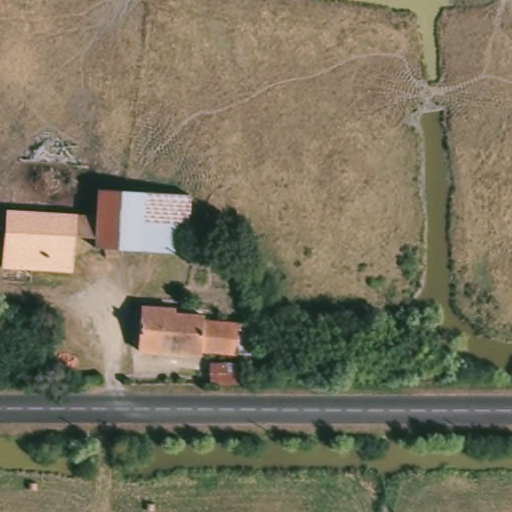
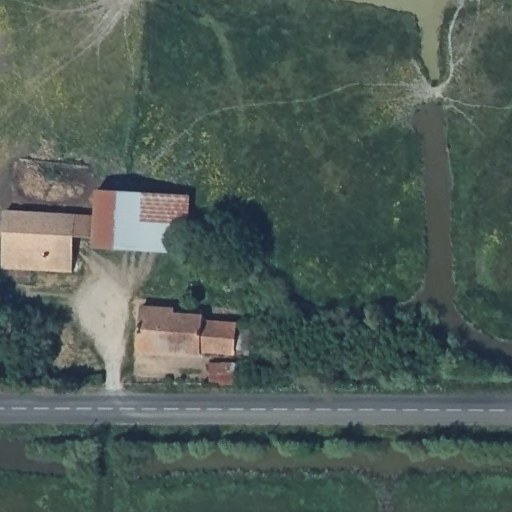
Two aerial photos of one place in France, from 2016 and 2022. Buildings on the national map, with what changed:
unchanged [(166,246),(99,249),(101,240),(81,241),(81,273),(14,273),(13,218),(103,217),(103,188),(164,187),(166,246)]
unchanged [(254,345),(209,346),(209,355),(146,352),(142,306),(174,303),(174,316),(208,314),(209,326),(253,321),(254,345)]
unchanged [(216,383),(215,360),(242,360),(244,383),(216,383)]

